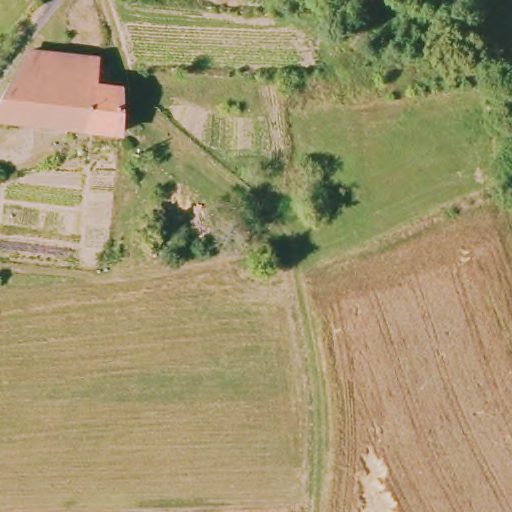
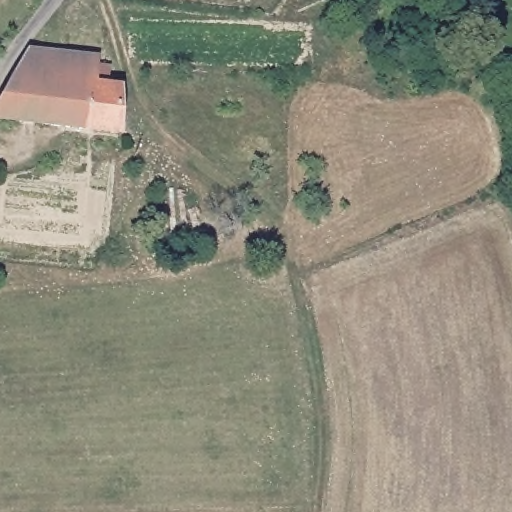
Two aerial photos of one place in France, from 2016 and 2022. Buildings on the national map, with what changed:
unchanged [(17,82),(35,53),(37,53),(100,65),(99,78),(112,79),(111,95),(123,97),(127,141),(107,138),(0,122),(0,115),(17,82)]

